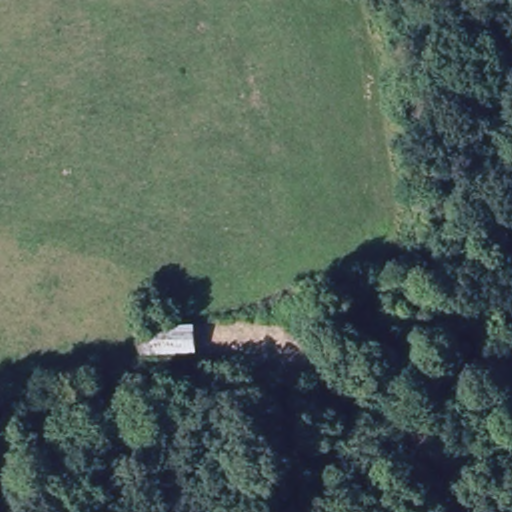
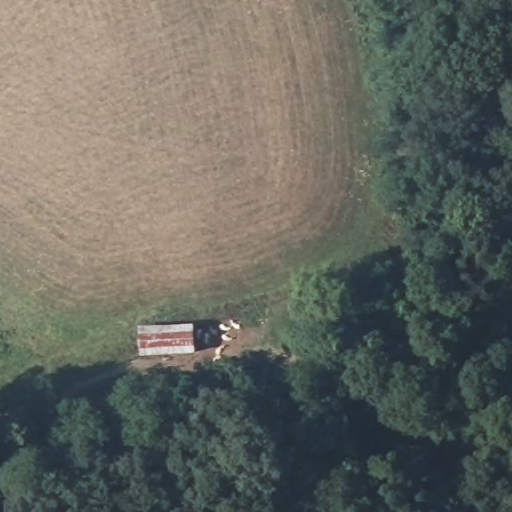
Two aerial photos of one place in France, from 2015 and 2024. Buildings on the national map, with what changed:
unchanged [(142,355),(140,329),(199,326),(200,354),(142,355)]

